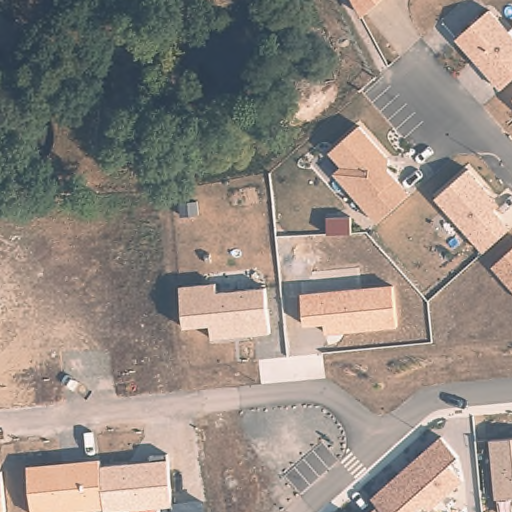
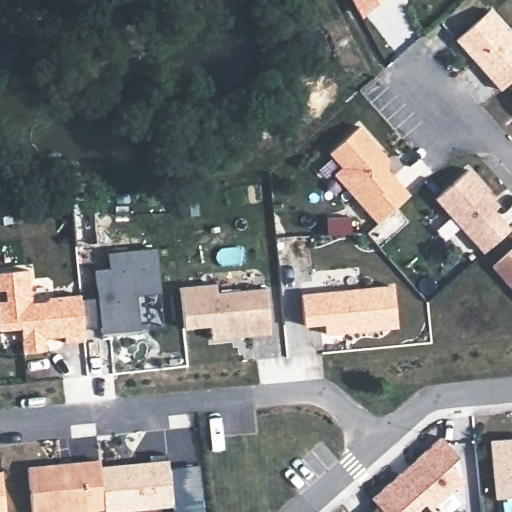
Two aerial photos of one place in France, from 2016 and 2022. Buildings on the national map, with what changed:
unchanged [(119,18),(101,17),(101,0),(120,0),(119,18)]
unchanged [(362,18),(353,0),(384,0),(362,18)]
unchanged [(500,89),(456,40),(491,10),(512,34),(512,78),(500,89)]
unchanged [(359,125),(388,158),(383,164),(409,195),(377,224),(332,174),(341,166),(328,151),(359,125)]
unchanged [(467,168),(493,197),(496,209),(511,227),(483,252),(433,197),(467,168)]
unchanged [(492,266),(512,249),(512,289),(492,266)]
new [(112,272),(112,257),(158,252),(162,296),(138,298),(142,332),(104,335),(97,273),(112,272)]
new [(35,305),(49,303),(52,299),(84,296),(88,343),(69,345),(67,335),(48,337),(50,352),(27,355),(25,330),(2,332),(0,311),(0,274),(32,271),(35,305)]
unchanged [(216,283),(217,292),(267,287),(270,334),(212,338),(211,327),(182,330),(178,287),(216,283)]
unchanged [(325,320),(307,322),(304,293),(393,285),(397,325),(326,330),(325,320)]
unchanged [(449,464),(462,479),(430,507),(424,501),(413,512),(389,512),(374,495),(440,436),(459,455),(449,464)]
unchanged [(512,438),(512,497),(495,499),(488,440),(512,438)]
unchanged [(121,512),(105,512),(105,510),(81,512),(32,512),(27,467),(102,460),(102,466),(169,460),(175,504),(204,501),(205,512),(173,512),(172,507),(121,512)]
unchanged [(0,512),(0,471),(2,471),(6,512),(0,512)]
unchanged [(370,512),(377,506),(371,499),(374,495),(389,512),(370,512)]

